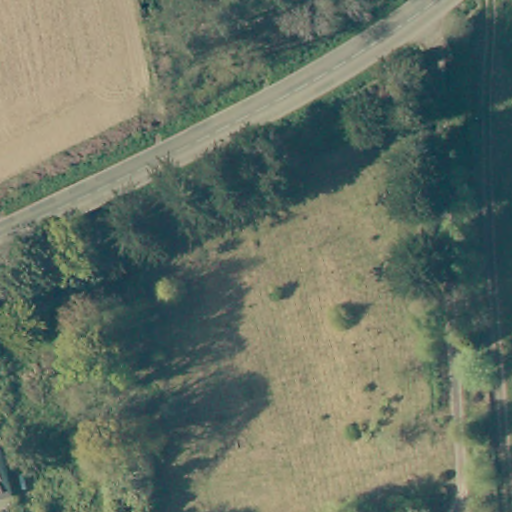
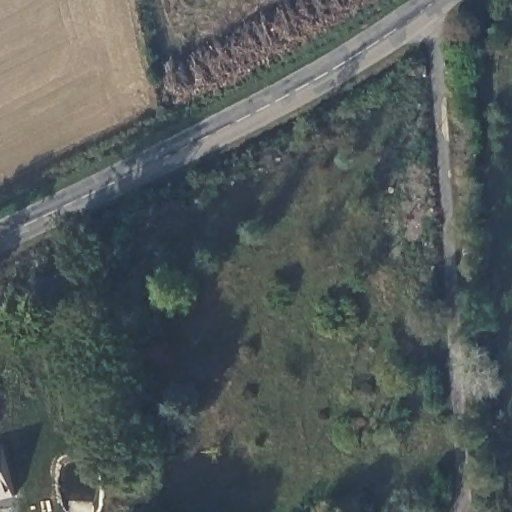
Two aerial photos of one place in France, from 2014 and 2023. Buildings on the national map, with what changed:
unchanged [(16,496),(0,500),(0,450),(6,449),(16,496)]

